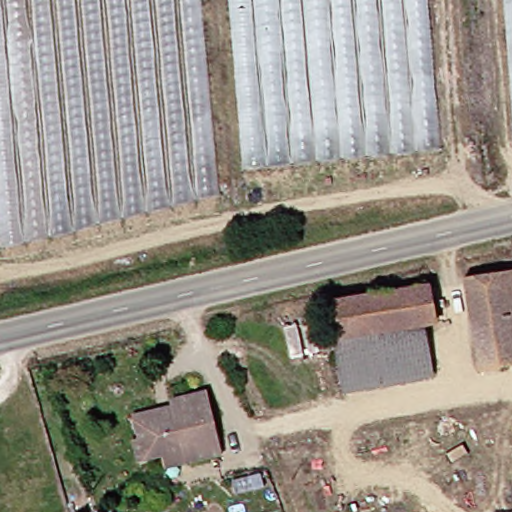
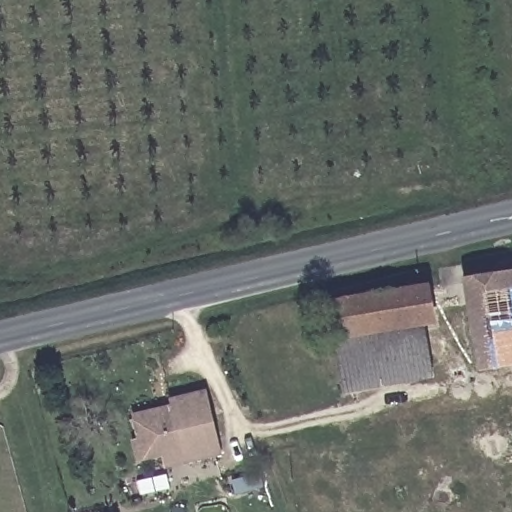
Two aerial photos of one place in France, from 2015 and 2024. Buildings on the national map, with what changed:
demolished [(0,191),(0,0),(204,0),(221,195),(5,247),(0,191)]
demolished [(233,0),(433,0),(445,150),(248,170),(233,0)]
demolished [(512,44),(508,0),(512,0),(512,44)]
unchanged [(470,281),(512,275),(512,367),(483,371),(470,281)]
unchanged [(340,340),(334,306),(434,291),(439,325),(431,327),(340,340)]
unchanged [(439,380),(347,393),(340,340),(431,327),(439,380)]
unchanged [(146,459),(138,461),(134,443),(143,441),(138,417),(137,409),(182,401),(181,392),(218,385),(231,456),(194,463),(174,466),(172,454),(146,459)]

